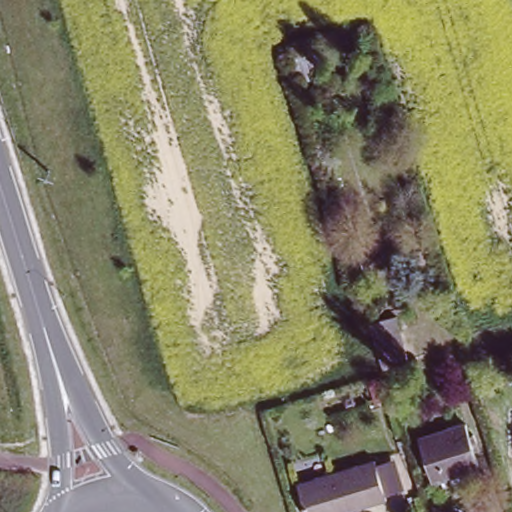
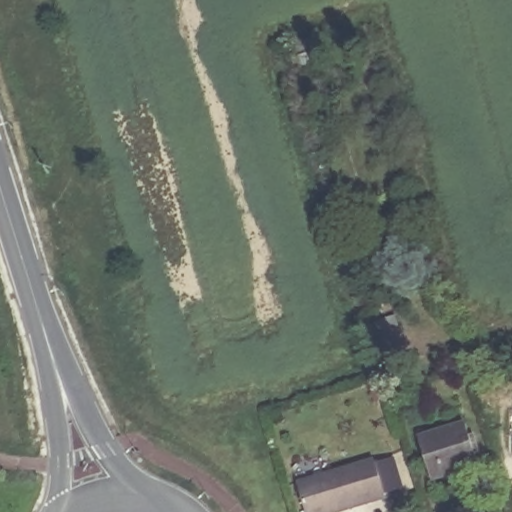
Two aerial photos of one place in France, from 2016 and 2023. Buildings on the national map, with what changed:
unchanged [(392,318),(405,360),(388,365),(375,323),(392,318)]
unchanged [(380,380),(386,400),(373,403),(367,383),(380,380)]
unchanged [(465,421),(470,434),(475,432),(480,447),(474,449),(477,462),(434,476),(421,435),(465,421)]
unchanged [(379,457),(390,496),(333,512),(309,512),(300,481),(379,457)]

